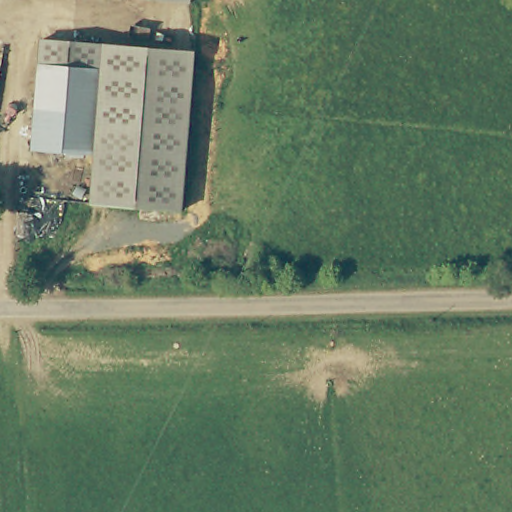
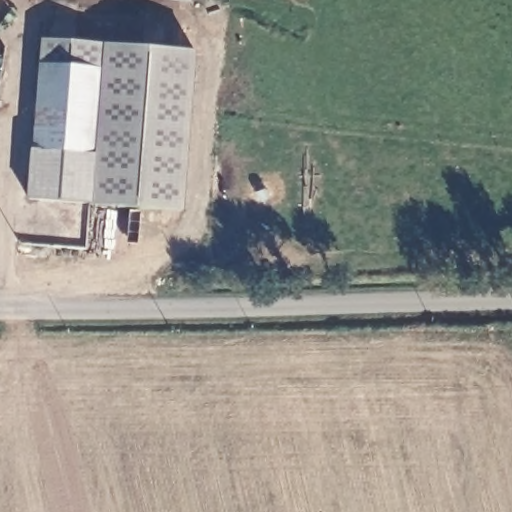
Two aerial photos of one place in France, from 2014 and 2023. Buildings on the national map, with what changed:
unchanged [(183,0),(187,0),(187,1),(183,0)]
unchanged [(45,71),(51,41),(109,47),(106,75),(45,71)]
unchanged [(94,204),(99,159),(106,75),(109,47),(197,54),(186,211),(94,204)]
unchanged [(45,71),(106,75),(99,159),(39,154),(45,71)]
new [(34,199),(39,154),(99,159),(94,204),(34,199)]

